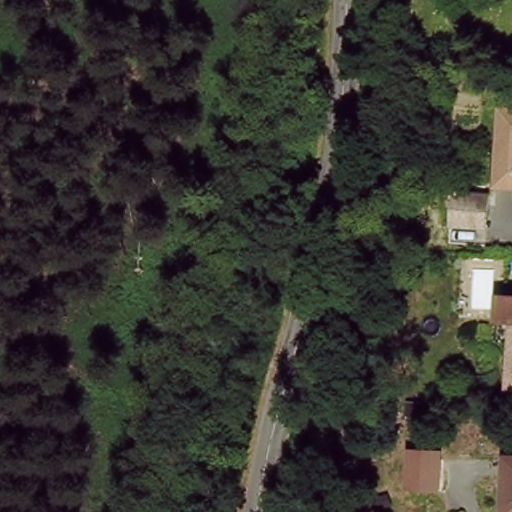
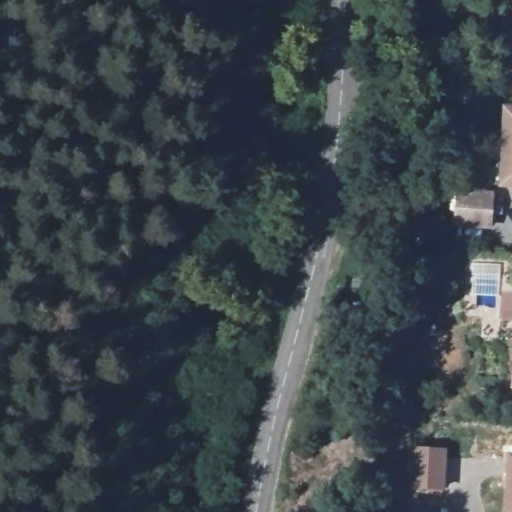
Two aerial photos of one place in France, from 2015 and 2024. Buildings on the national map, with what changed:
unchanged [(507,185),(508,107),(512,107),(512,185),(507,185)]
unchanged [(498,222),(468,222),(470,192),(500,191),(498,222)]
unchanged [(508,305),(512,305),(512,329),(505,329),(508,305)]
unchanged [(413,447),(447,449),(446,491),(411,488),(413,447)]
unchanged [(509,510),(512,452),(512,510),(509,510)]

